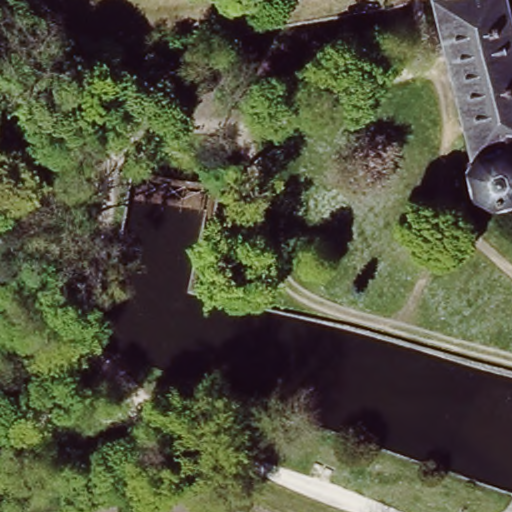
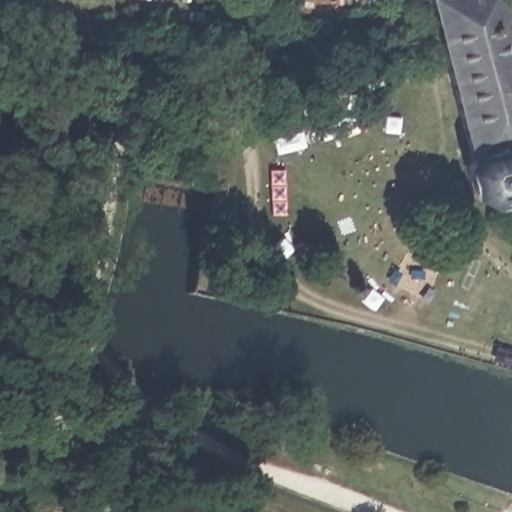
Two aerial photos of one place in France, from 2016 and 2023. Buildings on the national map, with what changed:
unchanged [(496,203),(480,190),(474,167),(478,157),(437,0),(512,0),(512,198),(496,203)]
unchanged [(403,2),(408,36),(381,41),(375,8),(403,2)]

